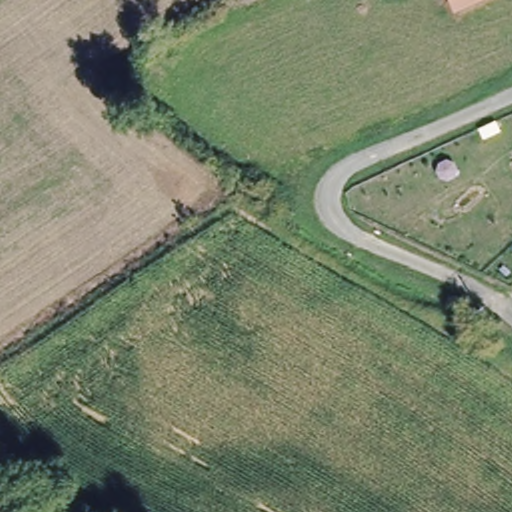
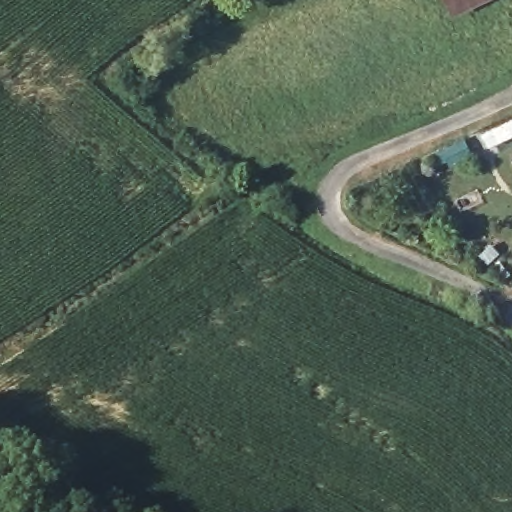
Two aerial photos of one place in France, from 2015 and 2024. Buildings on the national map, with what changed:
unchanged [(444,0),(483,0),(448,12),(444,0)]

